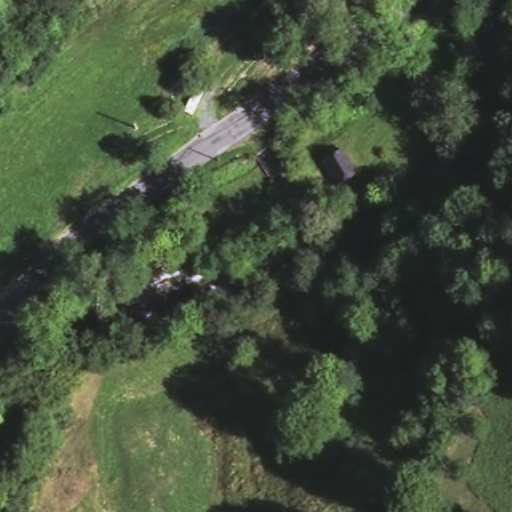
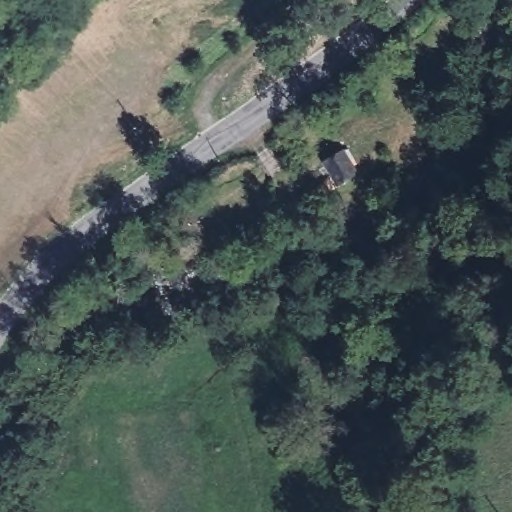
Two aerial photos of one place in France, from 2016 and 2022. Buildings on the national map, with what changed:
unchanged [(341,160),(359,190),(335,197),(320,175),(341,160)]

